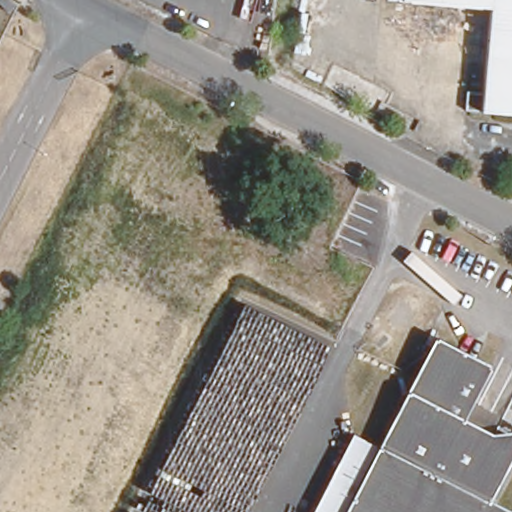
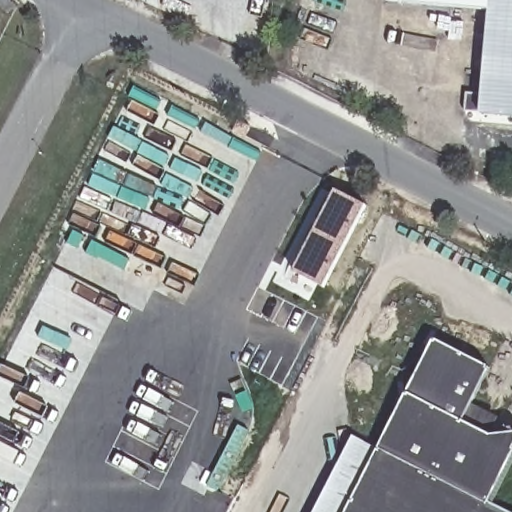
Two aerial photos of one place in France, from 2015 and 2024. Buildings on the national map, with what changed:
unchanged [(0,14),(0,0),(3,0),(9,9),(0,14)]
unchanged [(461,109),(462,89),(481,90),(488,8),(406,0),(512,0),(512,113),(461,109)]
new [(334,189),(365,205),(324,287),(294,272),(334,189)]
unchanged [(436,339),(492,368),(464,422),(500,441),(503,435),(512,434),(512,451),(487,500),(511,512),(347,512),(382,444),(436,339)]
unchanged [(382,444),(347,512),(321,512),(362,433),(382,444)]

